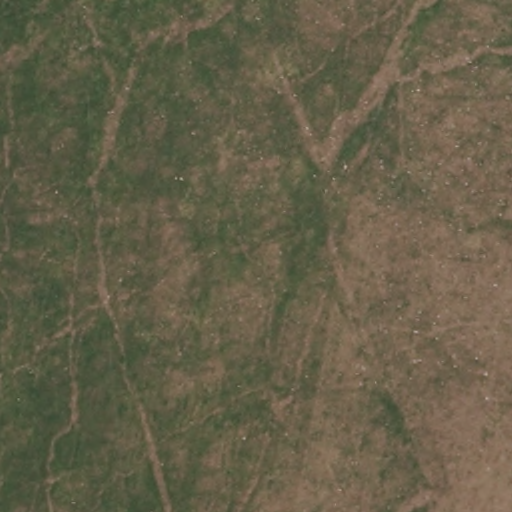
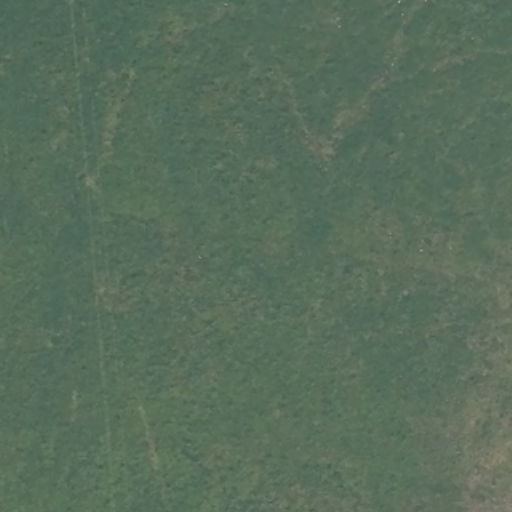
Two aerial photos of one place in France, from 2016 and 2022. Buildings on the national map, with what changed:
[]

